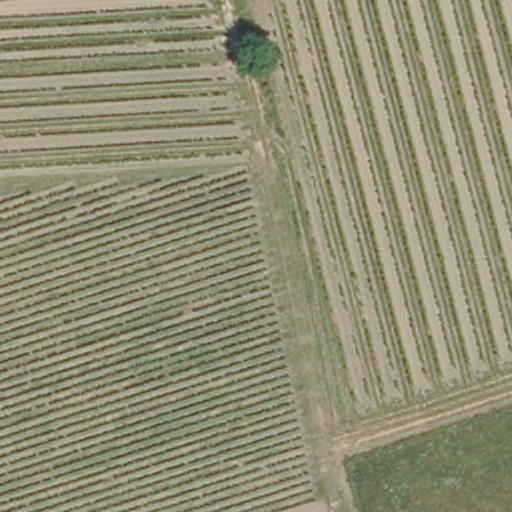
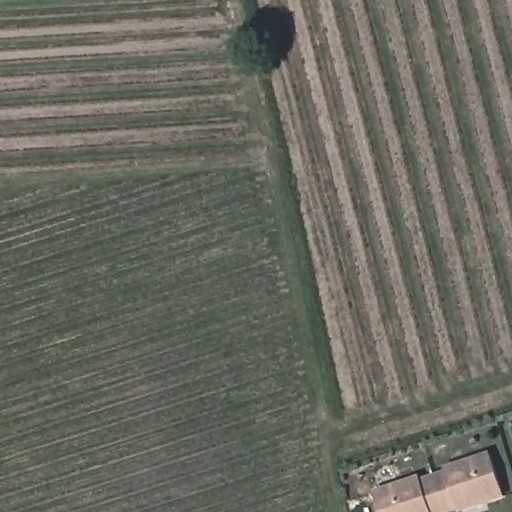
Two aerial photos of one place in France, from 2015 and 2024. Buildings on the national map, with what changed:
new [(455,512),(381,512),(375,490),(421,475),(422,478),(447,470),(447,467),(492,452),(507,499),(467,512),(461,512),(461,510),(455,512)]

